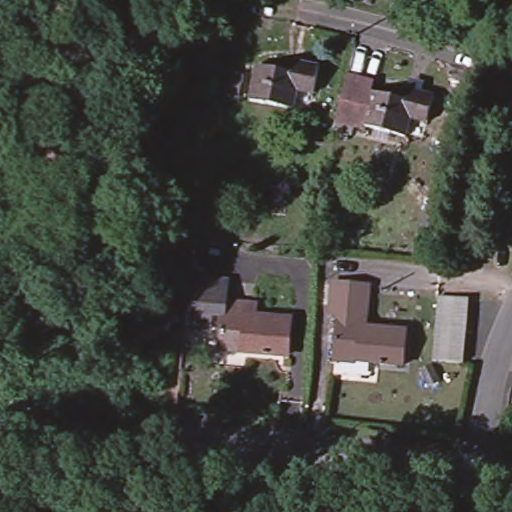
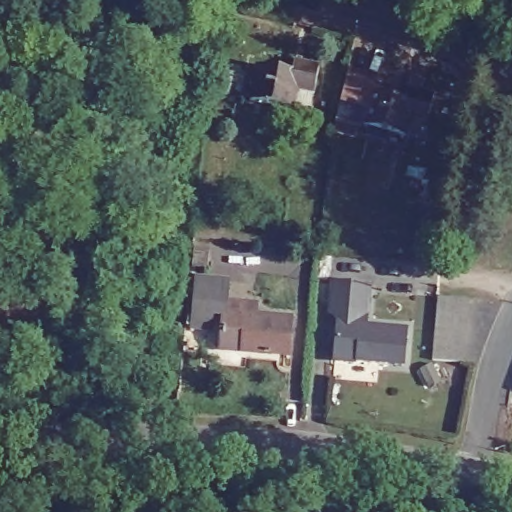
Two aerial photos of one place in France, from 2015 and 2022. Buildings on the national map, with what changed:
unchanged [(287,72),(289,60),(314,65),(308,92),(291,89),(288,108),(246,100),(253,64),(287,72)]
unchanged [(242,74),(237,97),(226,95),(230,72),(242,74)]
unchanged [(337,119),(346,78),(374,85),(372,92),(364,126),(337,119)]
unchanged [(406,101),(409,89),(433,95),(426,122),(409,118),(404,137),(364,126),(372,92),(406,101)]
unchanged [(223,307),(211,307),(209,323),(193,322),(194,312),(193,312),(196,273),(225,275),(223,295),(224,295),(256,297),(254,312),(290,314),(287,350),(241,347),(221,345),(222,326),(223,307)]
unchanged [(336,341),(339,314),(321,312),(323,284),(351,287),(349,313),(356,313),(355,326),(404,330),(402,366),(356,362),(335,360),(336,341)]
unchanged [(433,343),(434,330),(436,313),(438,297),(468,300),(466,316),(465,332),(464,346),(462,363),(432,361),(433,343)]

